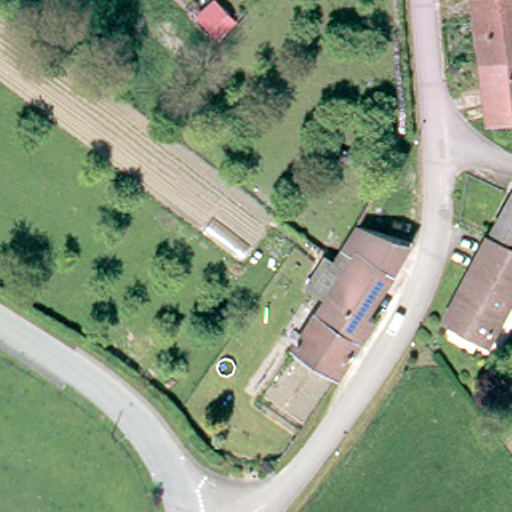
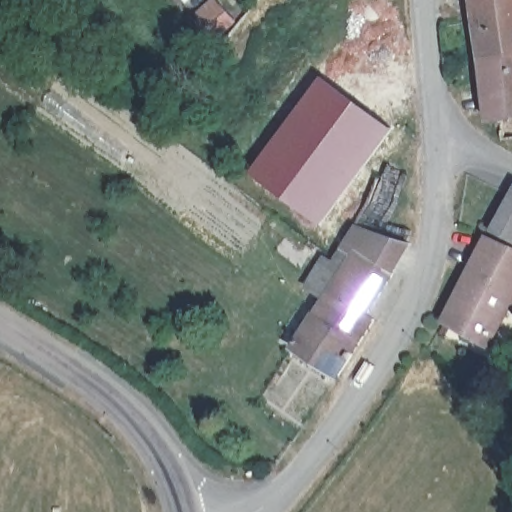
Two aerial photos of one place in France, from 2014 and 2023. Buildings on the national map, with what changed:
unchanged [(476,0),(512,0),(512,51),(499,52),(484,55),(476,0)]
unchanged [(487,81),(484,55),(499,52),(512,51),(512,115),(502,116),(489,116),(487,81)]
new [(323,225),(252,174),(324,77),(394,130),(323,225)]
unchanged [(494,237),(512,204),(512,246),(494,237)]
unchanged [(376,318),(339,375),(295,346),(326,300),(311,290),(304,286),(319,262),(329,269),(344,246),(356,228),(407,245),(394,272),(367,313),(376,318)]
unchanged [(503,358),(446,327),(491,241),(512,251),(512,342),(503,358)]

